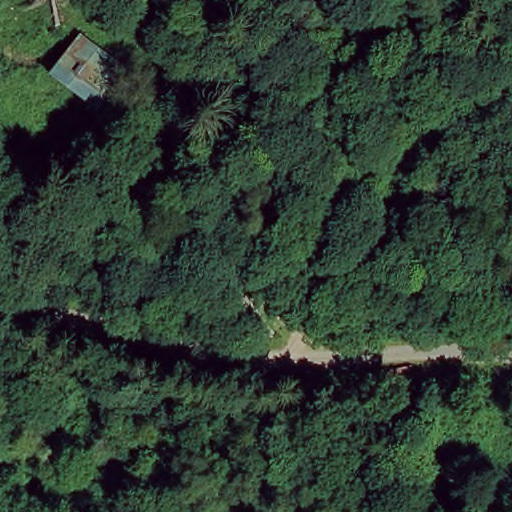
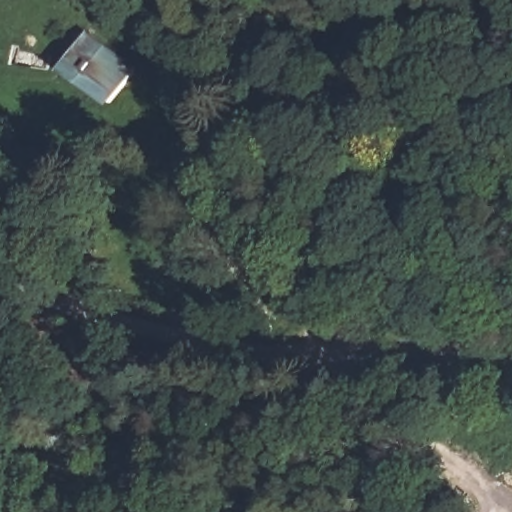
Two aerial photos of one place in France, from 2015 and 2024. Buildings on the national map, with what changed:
unchanged [(55,62),(85,25),(135,64),(106,100),(55,62)]

